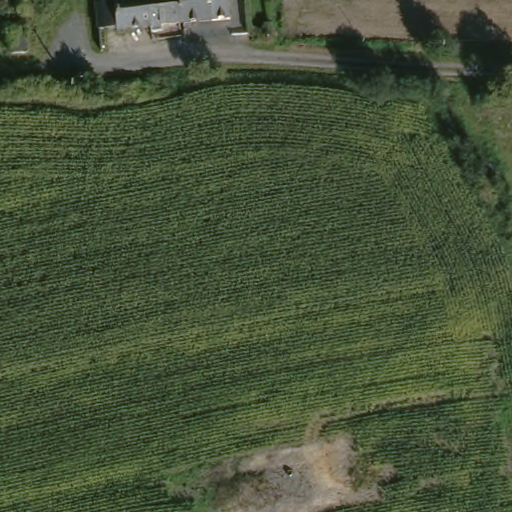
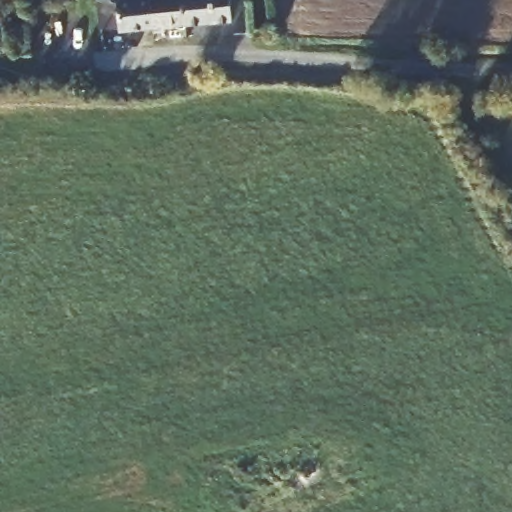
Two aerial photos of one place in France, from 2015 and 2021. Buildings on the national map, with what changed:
unchanged [(128,37),(127,32),(110,35),(106,0),(157,0),(161,32),(128,37)]
unchanged [(161,32),(157,0),(192,0),(194,28),(161,32)]
unchanged [(194,28),(192,0),(237,0),(240,22),(194,28)]
unchanged [(26,27),(30,54),(11,55),(9,29),(26,27)]

